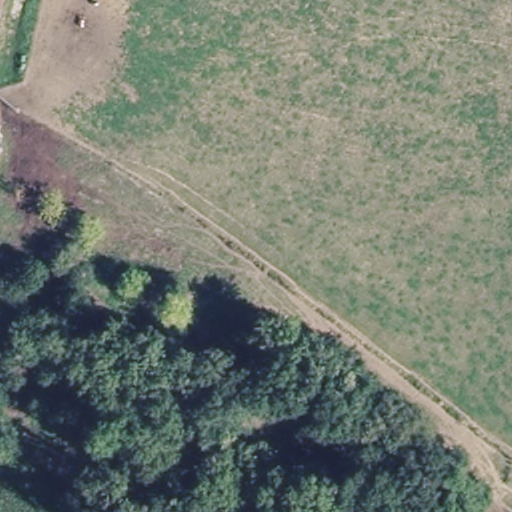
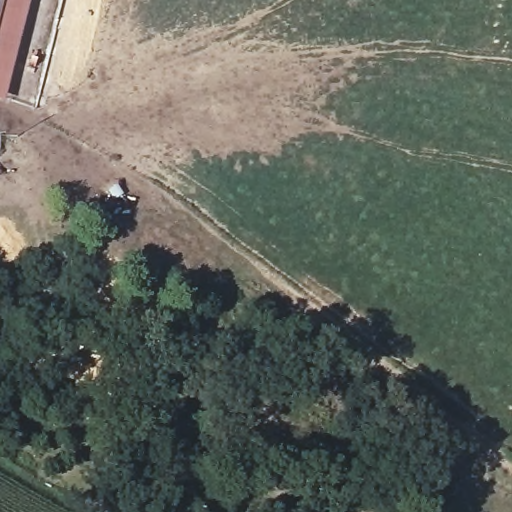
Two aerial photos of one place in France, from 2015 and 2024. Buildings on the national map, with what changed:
unchanged [(0,26),(0,0),(6,0),(0,26)]
new [(2,104),(0,103),(0,26),(6,0),(28,0),(2,104)]

